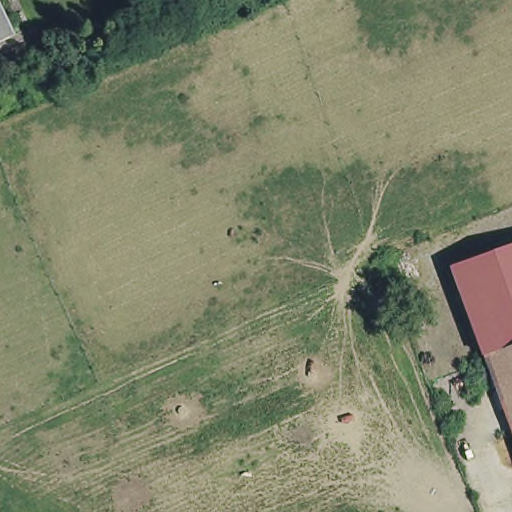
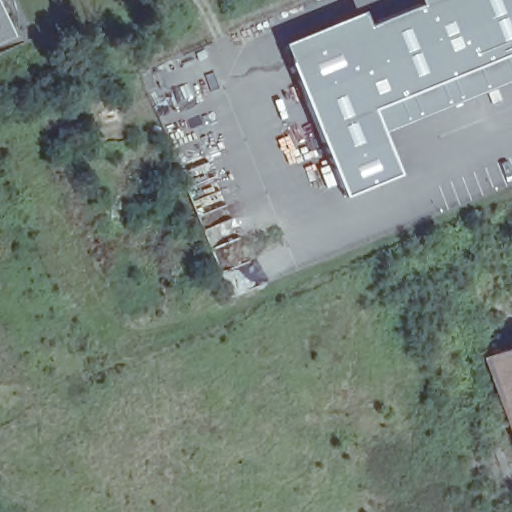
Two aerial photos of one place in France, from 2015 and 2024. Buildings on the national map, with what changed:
new [(399,173),(346,196),(283,43),(363,10),(369,25),(421,4),(419,0),(512,0),(512,80),(383,134),(399,173)]
unchanged [(1,9),(13,34),(0,40),(0,6),(1,9)]
demolished [(512,252),(512,347),(501,350),(487,356),(457,271),(512,252)]
unchanged [(512,381),(501,350),(512,347),(512,381)]
unchanged [(501,350),(512,381),(512,425),(487,356),(501,350)]

